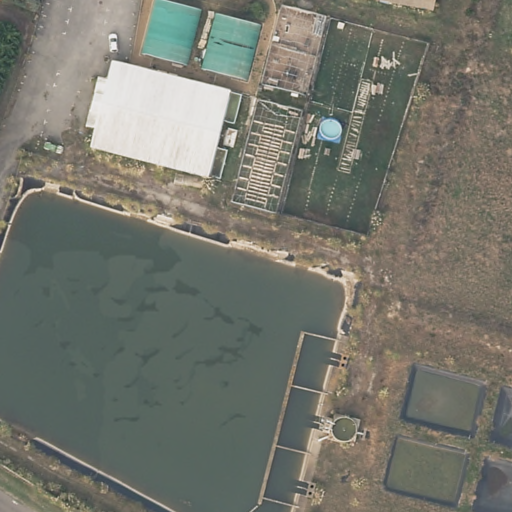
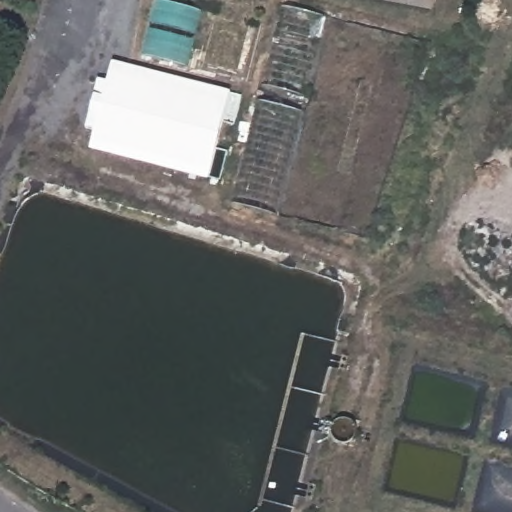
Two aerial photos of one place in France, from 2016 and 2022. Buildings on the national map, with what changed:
unchanged [(147,55),(158,0),(166,0),(201,8),(188,63),(147,55)]
unchanged [(371,0),(436,0),(434,11),(371,0)]
unchanged [(282,4),(325,14),(276,215),(234,202),(282,4)]
unchanged [(260,24),(245,79),(205,70),(218,15),(260,24)]
unchanged [(210,182),(92,153),(96,134),(86,132),(99,83),(109,85),(113,68),(231,98),(210,182)]
unchanged [(353,354),(350,369),(342,367),(346,352),(353,354)]
unchanged [(321,483),(317,498),(311,497),(315,481),(321,483)]

